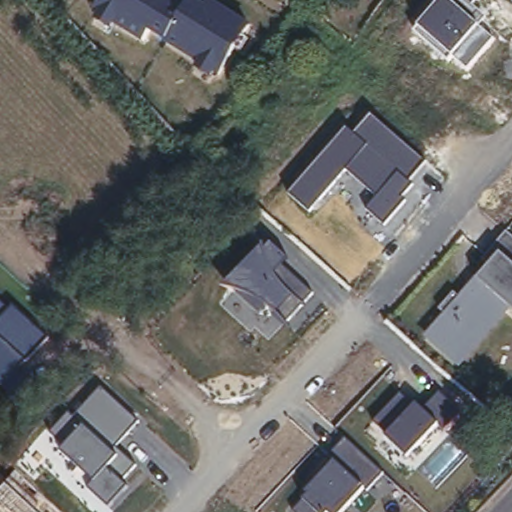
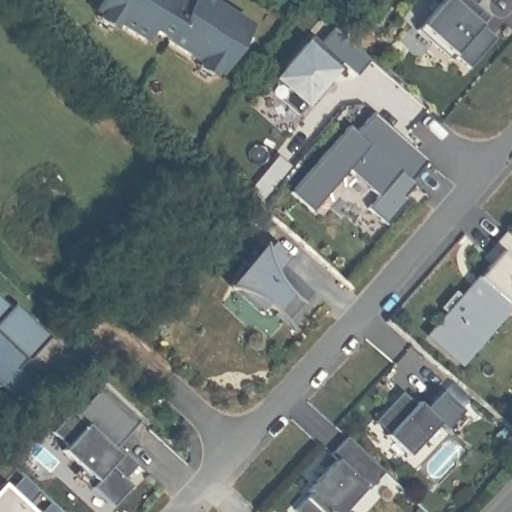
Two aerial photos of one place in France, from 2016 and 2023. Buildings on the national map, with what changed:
unchanged [(249,19),(219,76),(196,67),(201,56),(148,30),(144,39),(95,15),(102,0),(209,0),(249,19)]
unchanged [(419,26),(442,0),(477,0),(472,6),(486,18),(480,25),(495,37),(469,69),(452,57),(447,62),(412,34),(419,26)]
new [(311,37),(320,45),(333,27),(370,60),(355,76),(339,62),(293,113),(266,89),(311,37)]
unchanged [(379,196),(349,170),(310,213),(288,194),(347,128),(354,134),(370,115),(427,162),(411,180),(415,184),(403,196),(408,202),(387,225),(367,209),(379,196)]
unchanged [(512,235),(512,306),(461,364),(422,330),(486,259),(480,252),(503,227),(512,235)]
unchanged [(275,311),(263,303),(247,294),(224,287),(263,245),(266,249),(272,241),(288,257),(282,264),(314,294),(287,323),(275,311)]
unchanged [(0,387),(0,301),(10,310),(14,304),(49,337),(1,388),(0,387)]
unchanged [(48,434),(70,413),(74,416),(102,386),(138,422),(117,444),(136,464),(121,481),(129,488),(110,508),(90,489),(96,482),(61,451),(48,434)]
unchanged [(409,456),(374,425),(401,391),(421,409),(439,392),(464,411),(447,431),(437,423),(409,456)]
unchanged [(329,456),(347,436),(386,473),(370,492),(364,487),(342,512),(293,512),(293,511),(334,461),(329,456)]
unchanged [(9,493),(23,477),(61,512),(0,512),(0,490),(4,486),(9,493)]

